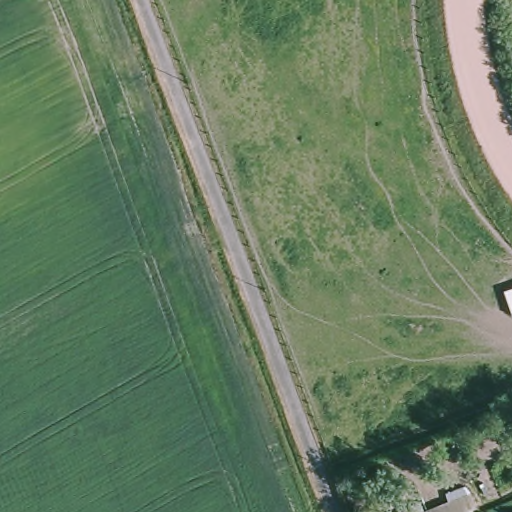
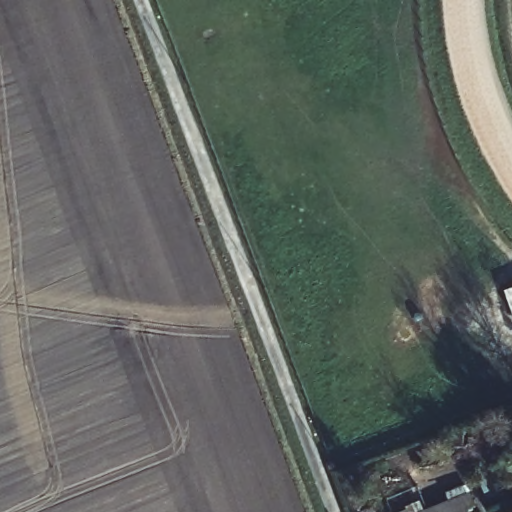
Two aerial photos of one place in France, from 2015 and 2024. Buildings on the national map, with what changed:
unchanged [(506,312),(500,287),(512,282),(512,311),(506,312)]
unchanged [(470,510),(463,512),(412,512),(463,492),(470,510)]

